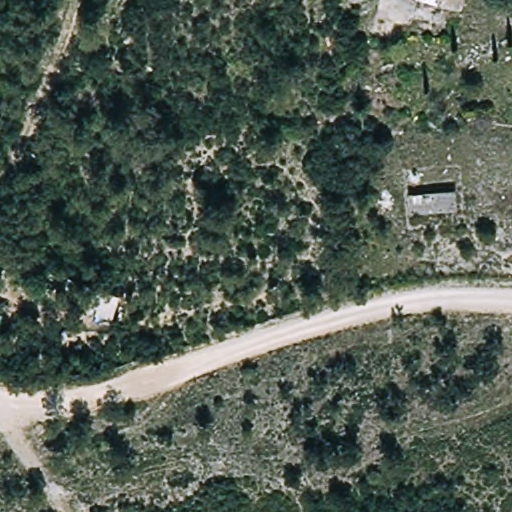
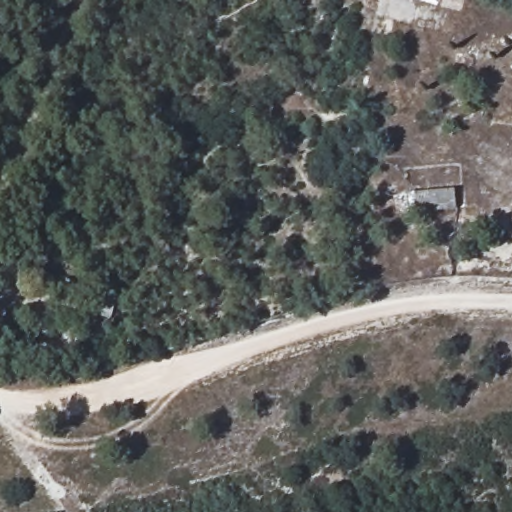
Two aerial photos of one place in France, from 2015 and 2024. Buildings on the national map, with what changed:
unchanged [(461,191),(462,207),(416,209),(416,192),(461,191)]
unchanged [(121,300),(114,321),(90,312),(96,291),(121,300)]

